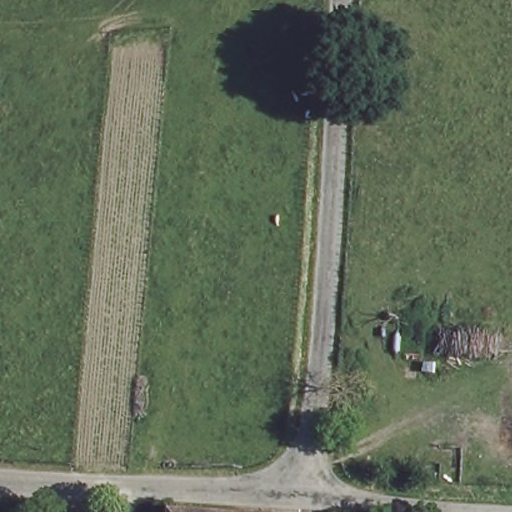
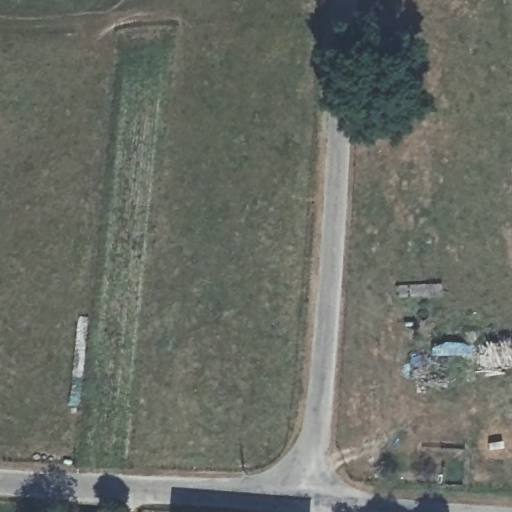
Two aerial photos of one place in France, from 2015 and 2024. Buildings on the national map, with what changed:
unchanged [(173,510),(211,512),(173,512),(173,510)]

